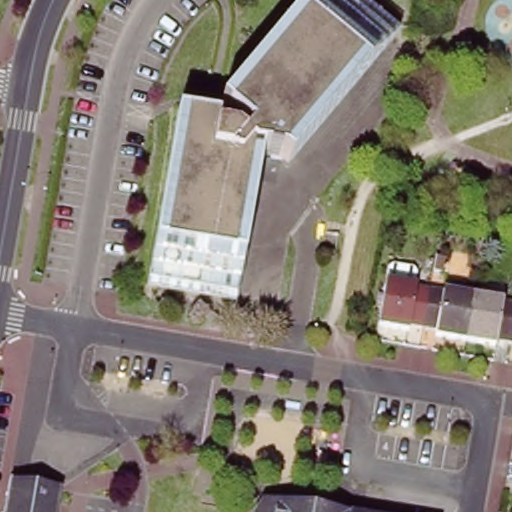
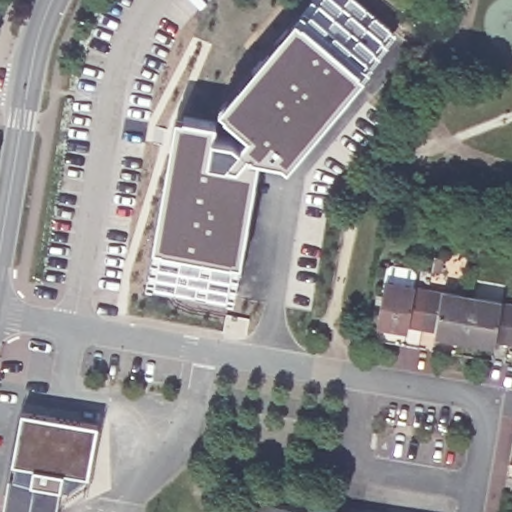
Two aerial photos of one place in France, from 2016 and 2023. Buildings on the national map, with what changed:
unchanged [(360,0),(399,31),(289,159),(261,153),(234,296),(168,284),(198,116),(231,122),(334,0),(360,0)]
unchanged [(406,331),(407,327),(380,321),(387,283),(429,290),(421,334),(406,331)]
unchanged [(436,331),(435,337),(421,334),(429,290),(473,298),(466,337),(436,331)]
unchanged [(493,347),(494,342),(466,337),(473,298),(512,305),(512,329),(508,350),(493,347)]
unchanged [(508,350),(512,329),(512,351),(508,350)]
new [(12,465),(23,411),(99,425),(88,479),(83,477),(69,489),(60,488),(30,483),(8,479),(12,465)]
unchanged [(56,512),(2,512),(8,479),(60,488),(56,512)]
unchanged [(264,501),(329,512),(262,512),(264,501)]

